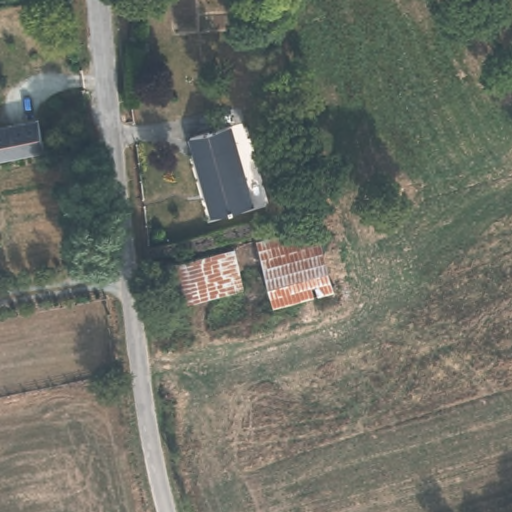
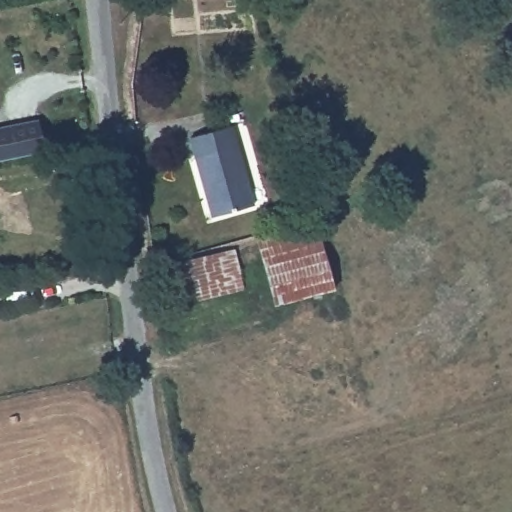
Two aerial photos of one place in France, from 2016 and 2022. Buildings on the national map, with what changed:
unchanged [(45,152),(0,161),(0,127),(39,119),(45,152)]
unchanged [(230,127),(250,205),(210,218),(187,140),(230,127)]
unchanged [(315,224),(332,288),(272,306),(255,240),(315,224)]
unchanged [(237,245),(246,286),(169,302),(161,262),(237,245)]

